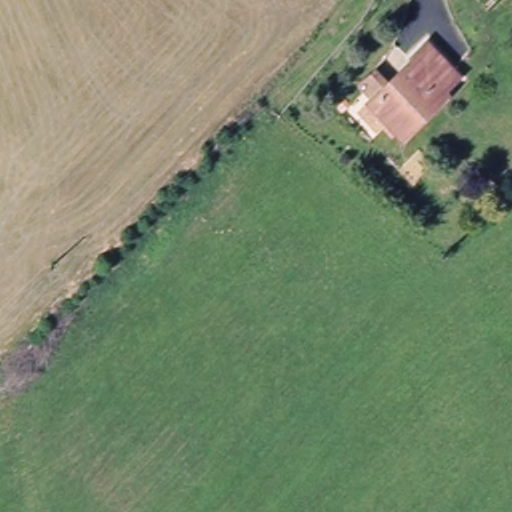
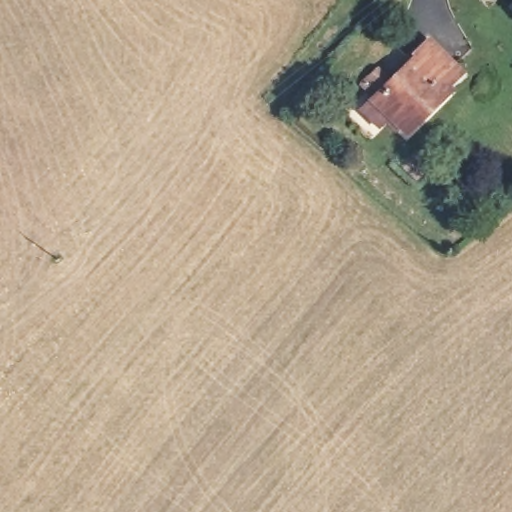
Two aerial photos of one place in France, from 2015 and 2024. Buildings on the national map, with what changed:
unchanged [(444,92),(445,97),(404,140),(372,111),(376,107),(361,94),(373,82),(387,94),(414,67),(409,63),(424,49),(457,80),(444,92)]

